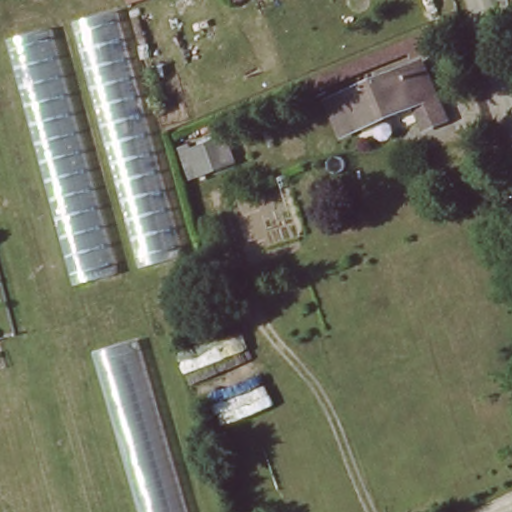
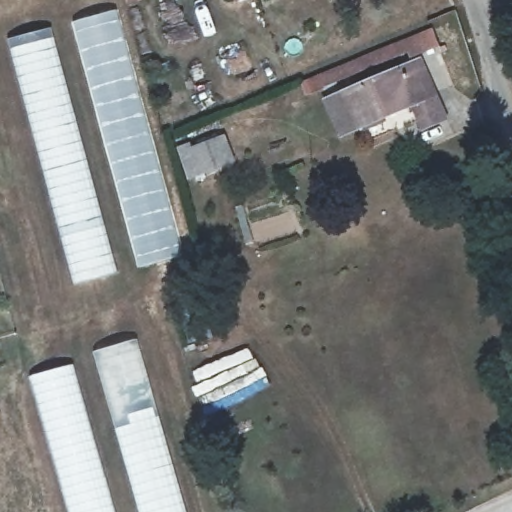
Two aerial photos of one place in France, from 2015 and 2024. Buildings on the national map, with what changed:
unchanged [(3,43),(117,9),(184,259),(118,276),(70,289),(3,43)]
unchanged [(450,90),(440,94),(450,115),(422,129),(410,104),(337,134),(318,73),(419,32),(450,90)]
unchanged [(226,160),(193,173),(183,150),(217,136),(226,160)]
unchanged [(92,354),(138,340),(187,512),(136,512),(92,354)]
new [(113,512),(67,512),(28,377),(70,366),(113,512)]

